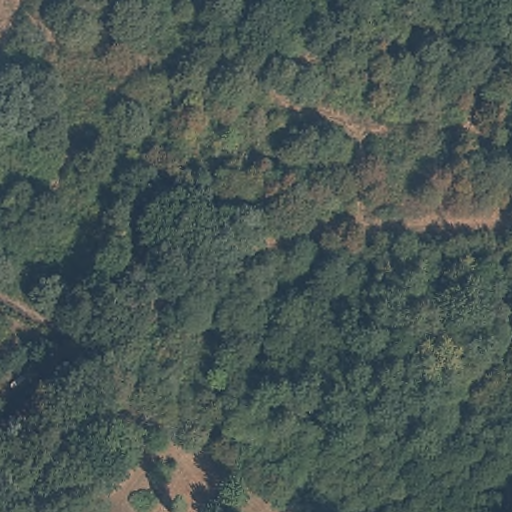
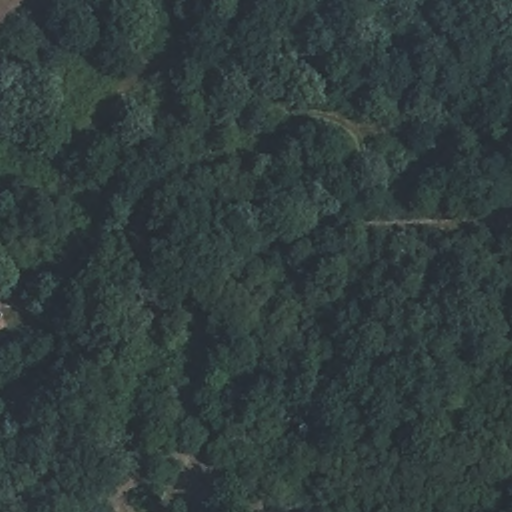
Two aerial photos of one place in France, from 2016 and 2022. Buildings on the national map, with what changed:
unchanged [(124,461),(107,486),(93,477),(111,454),(124,461)]

